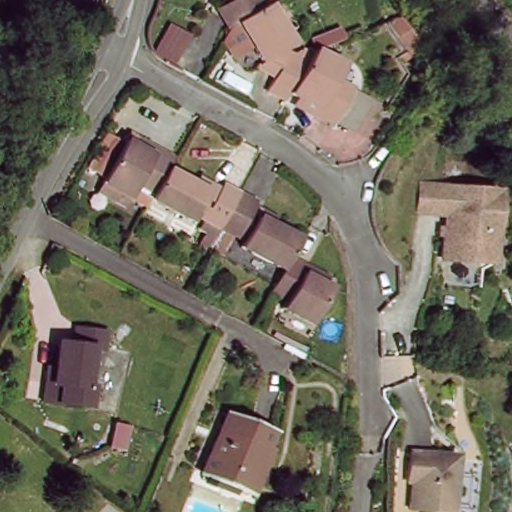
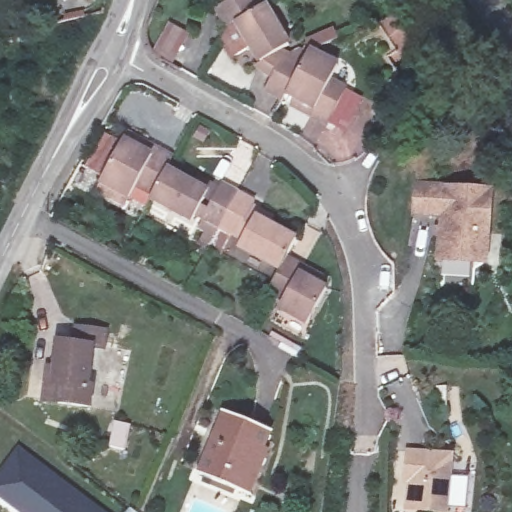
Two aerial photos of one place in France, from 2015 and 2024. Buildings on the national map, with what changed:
unchanged [(283,52),(256,65),(235,27),(226,30),(216,11),(238,0),(240,0),(241,2),(246,0),(247,0),(256,18),(264,15),(283,52)]
new [(397,9),(427,56),(400,74),(387,57),(396,51),(377,23),(397,9)]
unchanged [(333,73),(325,91),(341,100),(326,131),(309,119),(311,114),(285,98),(282,103),(264,92),(274,70),(278,72),(284,64),(299,73),(307,58),(333,73)]
unchanged [(155,183),(136,172),(129,185),(102,170),(123,131),(150,146),(153,140),(172,151),(167,160),(155,183)]
unchanged [(167,160),(206,185),(192,212),(152,189),(155,183),(167,160)]
unchanged [(496,249),(461,247),(460,204),(430,203),(430,177),(504,179),(505,221),(505,249),(496,249)]
unchanged [(238,189),(252,198),(236,227),(221,219),(205,208),(221,179),(238,189)]
unchanged [(280,262),(240,238),(255,211),(295,236),(286,250),(280,262)]
unchanged [(286,250),(301,259),(299,265),(328,282),(306,320),(278,303),(285,291),(269,282),(280,262),(286,250)]
unchanged [(101,342),(90,340),(83,379),(95,381),(93,402),(40,394),(41,375),(51,376),(57,335),(73,339),(76,318),(105,321),(101,342)]
unchanged [(250,493),(203,476),(226,410),(272,427),(250,493)]
unchanged [(397,505),(402,442),(466,442),(465,511),(397,505)]
new [(105,512),(19,512),(0,498),(0,472),(18,446),(105,512)]

